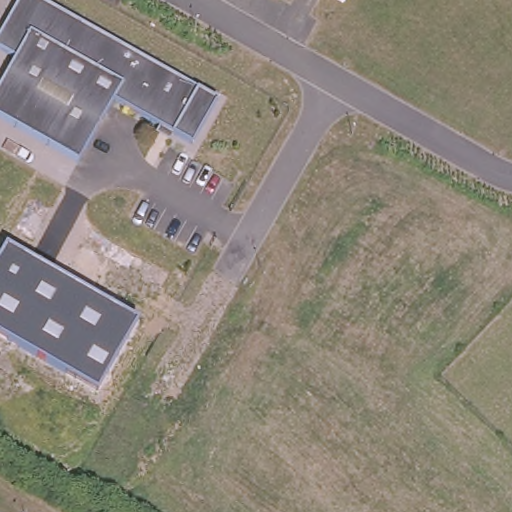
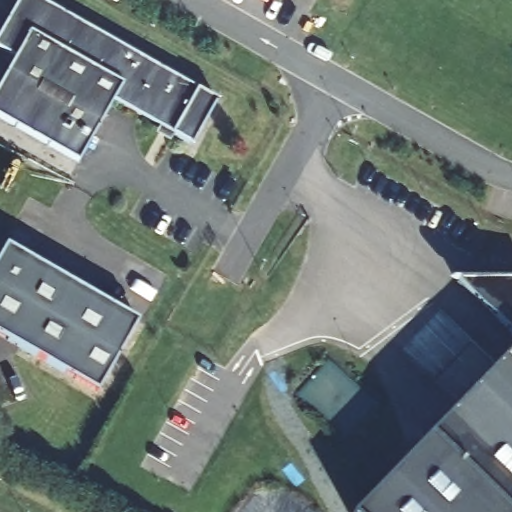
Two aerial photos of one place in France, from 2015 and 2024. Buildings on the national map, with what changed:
unchanged [(25,0),(52,0),(224,99),(193,152),(115,107),(85,160),(0,112),(0,97),(23,56),(1,43),(25,0)]
unchanged [(98,392),(0,336),(0,256),(6,245),(138,322),(98,392)]
new [(448,282),(512,285),(512,341),(448,282)]
new [(512,352),(512,512),(355,512),(512,352)]

